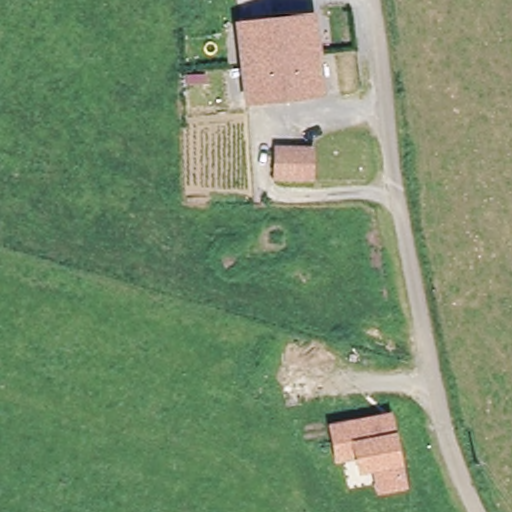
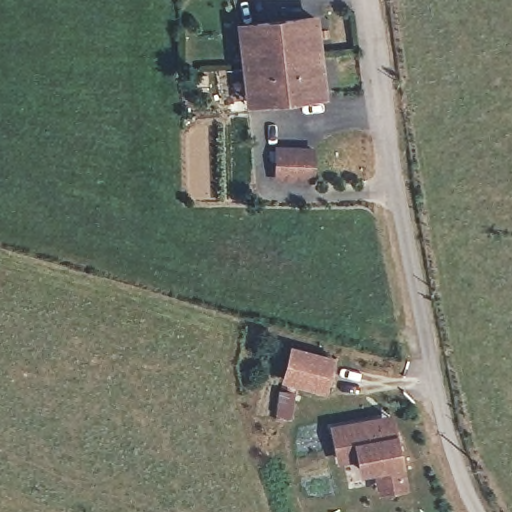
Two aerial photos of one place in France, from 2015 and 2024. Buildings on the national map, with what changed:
unchanged [(312,22),(313,34),(319,97),(285,100),(243,104),(239,57),(236,29),(312,22)]
unchanged [(315,150),(314,171),(314,179),(284,179),(279,178),(279,148),(315,150)]
new [(334,357),(325,393),(280,382),(289,344),(334,357)]
unchanged [(393,412),(410,489),(376,496),(373,472),(358,475),(356,460),(334,463),(328,423),(393,412)]

